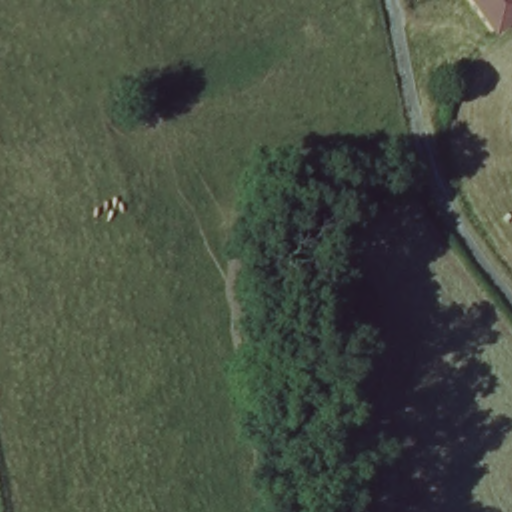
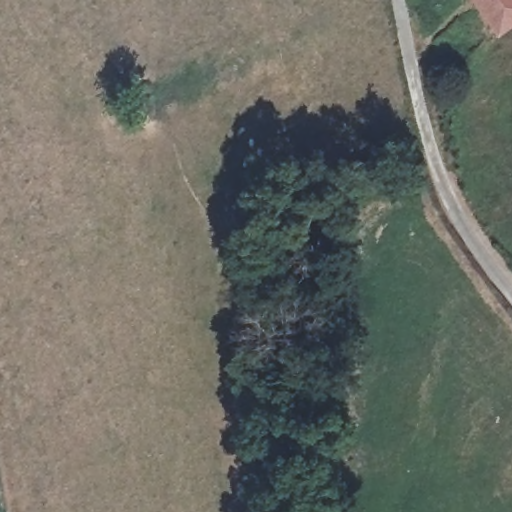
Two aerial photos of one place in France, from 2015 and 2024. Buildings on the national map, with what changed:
unchanged [(472,0),(512,0),(512,21),(496,35),(472,0)]

